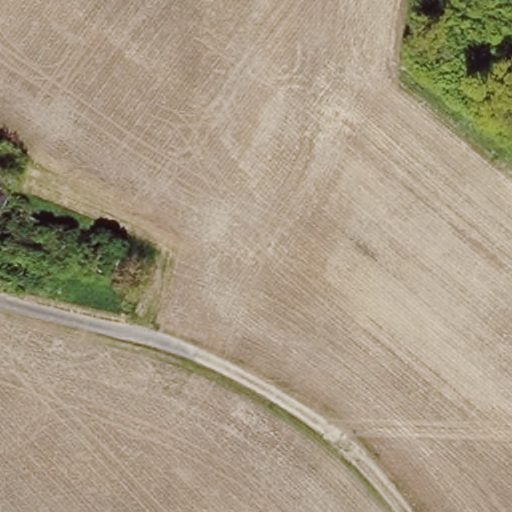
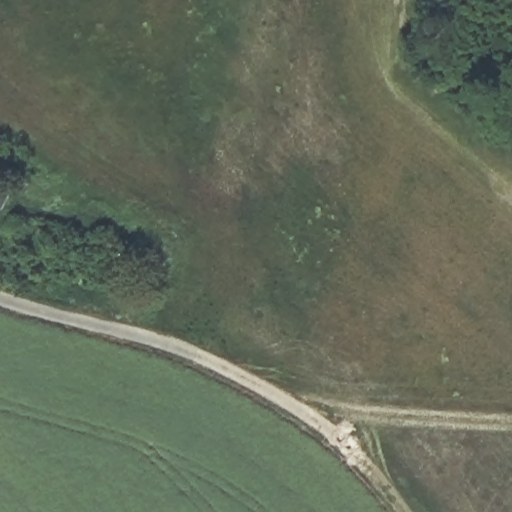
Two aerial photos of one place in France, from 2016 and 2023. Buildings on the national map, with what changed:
unchanged [(0,218),(0,191),(11,196),(0,218)]

